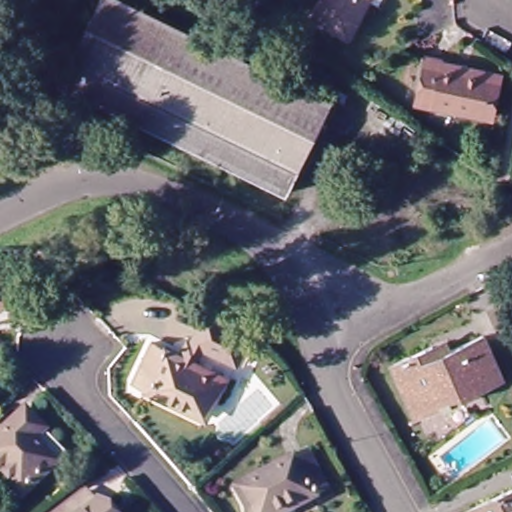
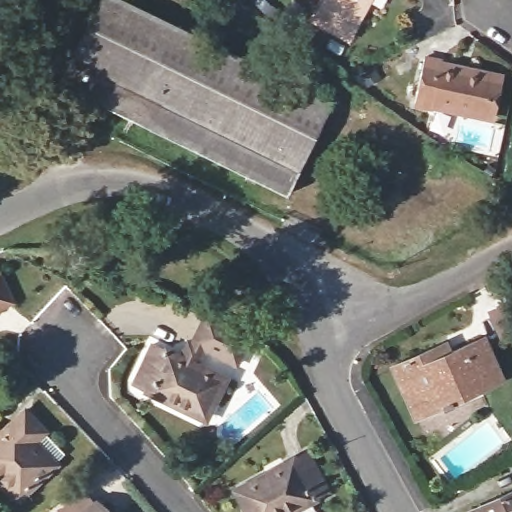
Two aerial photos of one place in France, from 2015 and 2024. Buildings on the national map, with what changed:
unchanged [(337,104),(294,197),(62,89),(106,0),(120,0),(337,104)]
unchanged [(314,30),(330,0),(371,0),(346,47),(314,30)]
unchanged [(442,62),(441,64),(500,77),(490,119),(433,107),(432,111),(413,107),(423,58),(442,62)]
unchanged [(15,304),(0,311),(0,273),(15,304)]
unchanged [(500,344),(488,316),(512,307),(512,339),(500,344)]
unchanged [(239,371),(203,354),(197,366),(234,384),(215,421),(142,387),(160,347),(185,359),(206,316),(255,339),(239,371)]
unchanged [(407,390),(398,366),(436,349),(449,343),(453,353),(486,339),(505,381),(431,412),(420,417),(407,390)]
unchanged [(31,423),(47,442),(36,451),(55,475),(20,504),(0,480),(0,437),(7,444),(31,423)]
unchanged [(296,512),(250,512),(239,490),(308,454),(330,495),(296,512)]
unchanged [(465,512),(512,491),(512,512),(465,512)]
unchanged [(61,512),(81,496),(94,512),(61,512)]

